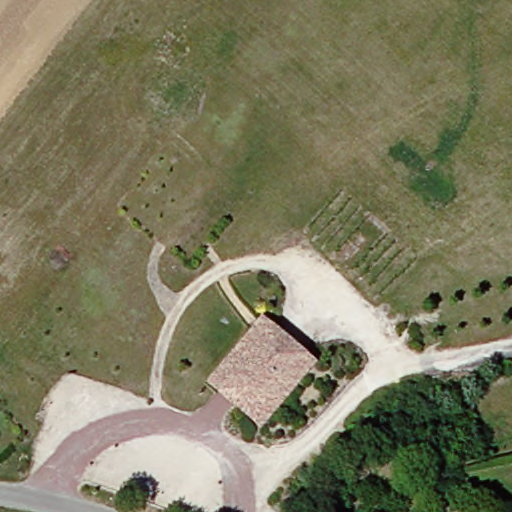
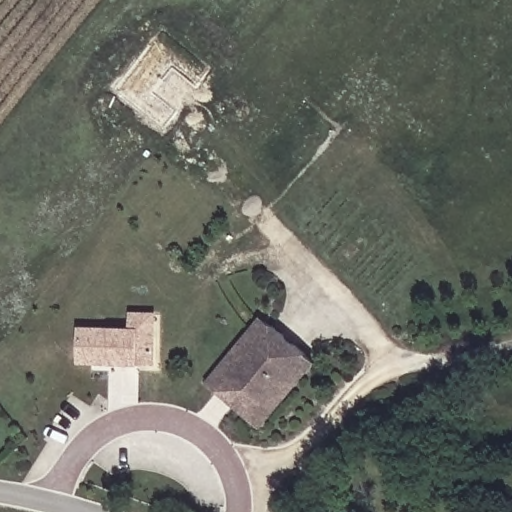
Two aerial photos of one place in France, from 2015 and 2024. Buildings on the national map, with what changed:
new [(155,366),(140,366),(80,364),(80,328),(132,329),(132,314),(152,314),(157,314),(155,366)]
unchanged [(320,364),(267,429),(212,382),(267,318),(277,324),(235,375),(270,404),(312,356),(320,364)]
unchanged [(270,404),(235,375),(277,324),(312,356),(270,404)]

